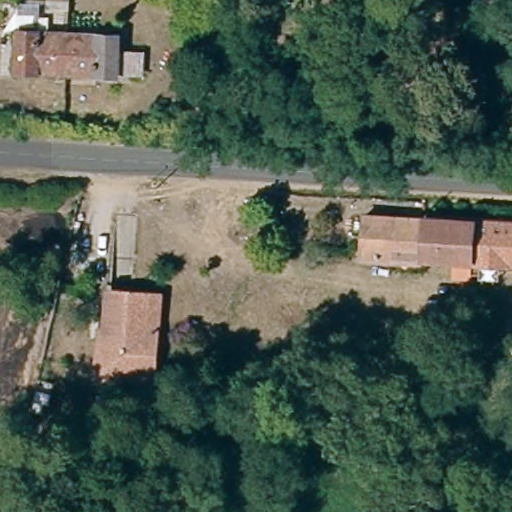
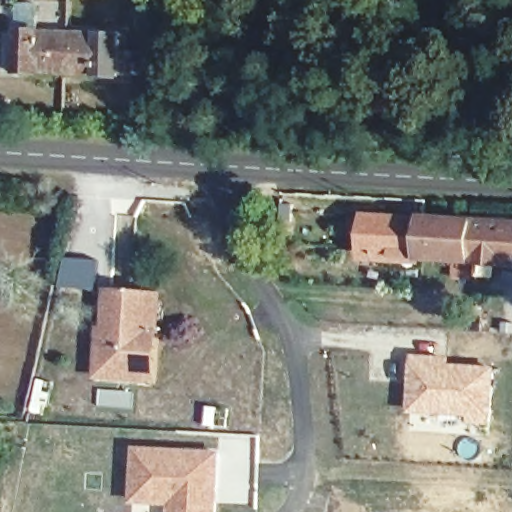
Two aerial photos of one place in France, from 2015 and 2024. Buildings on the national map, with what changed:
unchanged [(119,51),(141,55),(140,79),(119,79),(89,78),(13,77),(15,33),(10,8),(36,9),(35,31),(120,36),(119,51)]
unchanged [(359,257),(360,217),(420,221),(419,260),(359,257)]
unchanged [(420,221),(467,225),(465,263),(419,260),(420,221)]
unchanged [(465,263),(467,225),(512,228),(512,266),(465,263)]
unchanged [(95,376),(97,342),(100,342),(103,293),(140,295),(137,377),(95,376)]
unchanged [(140,295),(153,296),(150,378),(137,377),(140,295)]
new [(411,353),(453,356),(452,361),(497,367),(492,427),(406,414),(411,353)]
demolished [(446,364),(441,405),(429,402),(434,361),(446,364)]
new [(218,494),(217,504),(217,512),(172,512),(173,505),(154,504),(134,503),(135,478),(137,452),(219,457),(218,494)]

